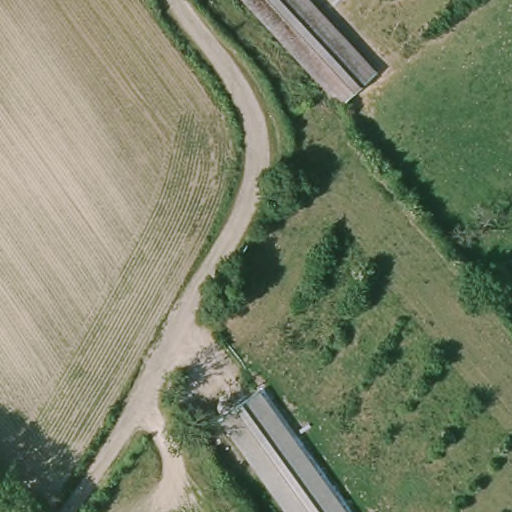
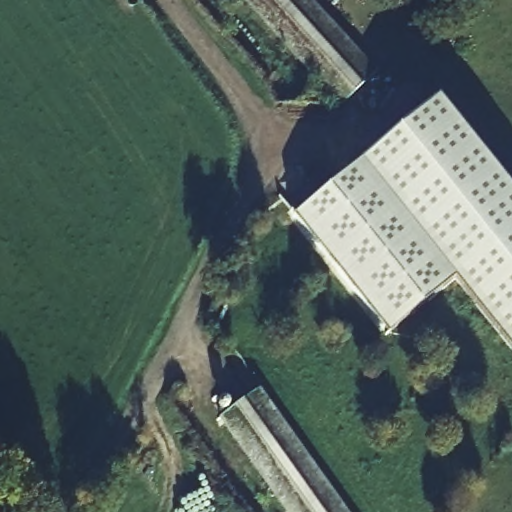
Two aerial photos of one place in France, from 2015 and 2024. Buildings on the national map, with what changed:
unchanged [(377,71),(340,103),(246,0),(312,0),(377,71)]
new [(445,103),(512,186),(512,346),(466,276),(394,336),(298,222),(445,103)]
unchanged [(287,512),(222,415),(262,391),(344,512),(287,512)]

